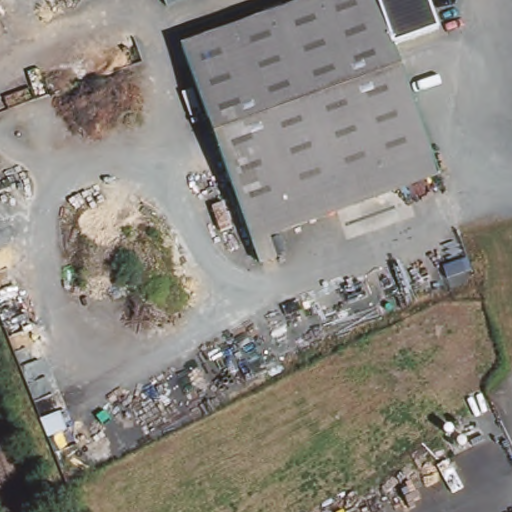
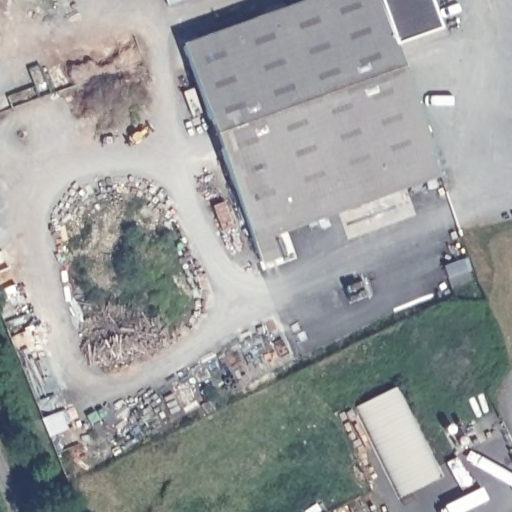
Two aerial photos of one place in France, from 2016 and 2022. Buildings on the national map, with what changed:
unchanged [(223,170),(182,42),(305,0),(427,0),(436,28),(394,44),(431,156),(239,218),(223,170)]
unchanged [(431,156),(438,174),(246,236),(239,218),(431,156)]
new [(399,494),(355,407),(396,387),(438,476),(399,494)]

